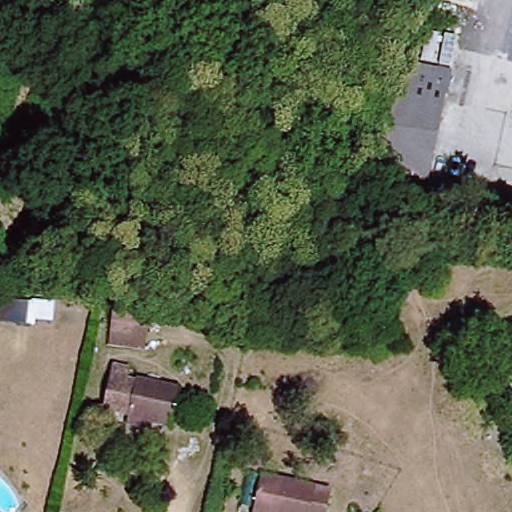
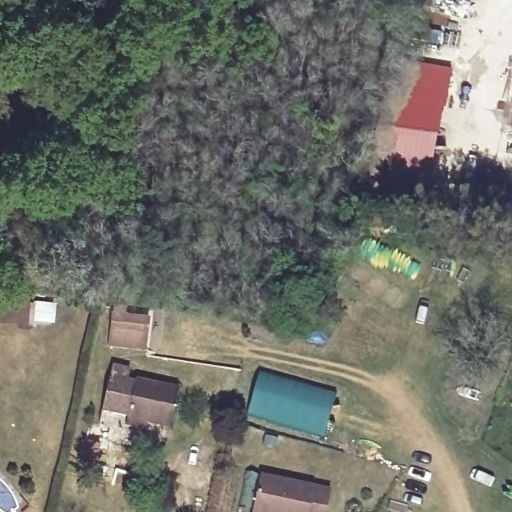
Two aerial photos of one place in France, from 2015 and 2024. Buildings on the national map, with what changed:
unchanged [(400,60),(460,75),(432,201),(371,187),(400,60)]
unchanged [(55,319),(35,318),(35,326),(0,321),(0,311),(2,293),(57,302),(55,319)]
unchanged [(150,324),(147,340),(115,336),(117,320),(150,324)]
unchanged [(173,424),(151,419),(150,425),(130,420),(131,413),(106,407),(113,375),(116,362),(132,366),(130,376),(140,379),(142,377),(182,385),(173,424)]
new [(259,367),(335,389),(324,436),(245,415),(259,367)]
unchanged [(329,493),(325,512),(252,512),(260,477),(329,493)]

